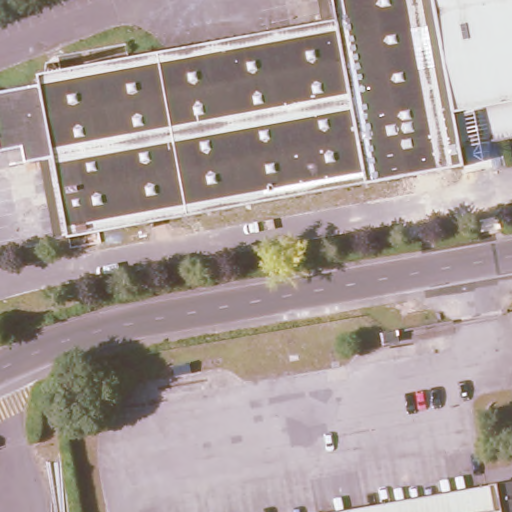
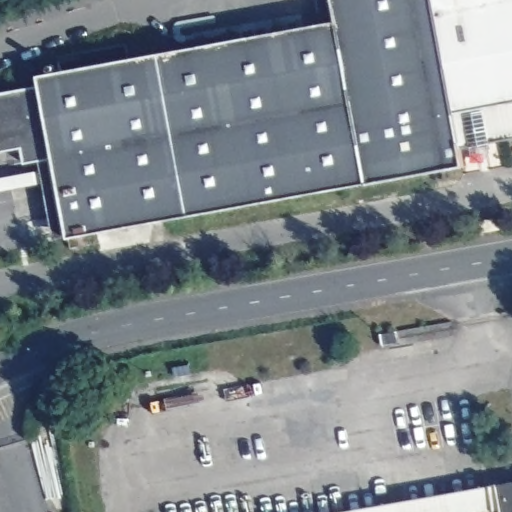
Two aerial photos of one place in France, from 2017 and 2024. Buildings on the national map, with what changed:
unchanged [(470,167),(233,209),(203,46),(338,22),(334,0),(512,0),(512,139),(465,147),(470,167)]
unchanged [(57,159),(25,163),(22,149),(2,152),(0,141),(0,94),(41,87),(40,75),(203,46),(233,209),(71,237),(57,159)]
unchanged [(490,483),(512,479),(512,512),(473,512),(494,508),(490,483)]
unchanged [(473,512),(320,512),(490,483),(494,508),(473,512)]

